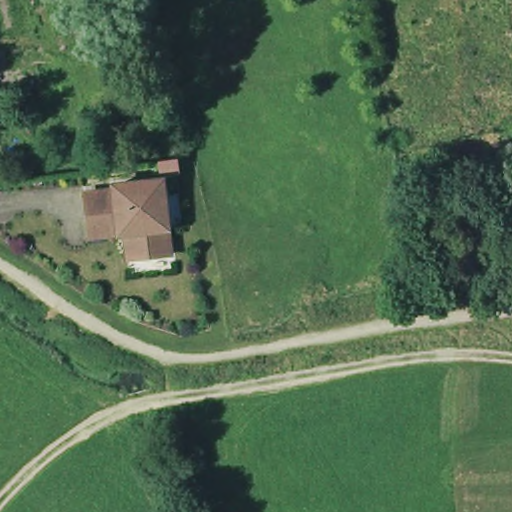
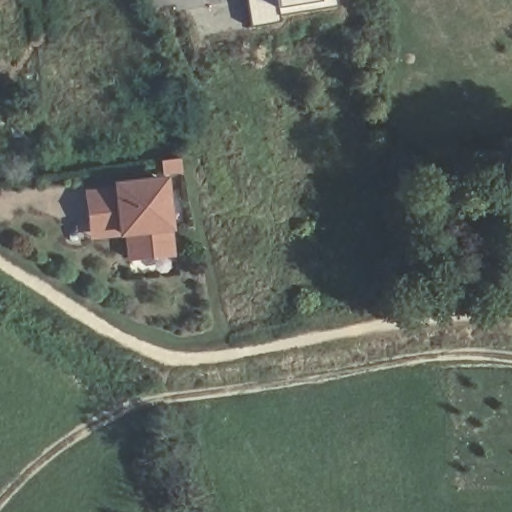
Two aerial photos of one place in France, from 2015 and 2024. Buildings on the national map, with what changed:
new [(278,21),(249,26),(245,0),(274,0),(276,10),(278,21)]
new [(276,10),(274,0),(319,0),(319,3),(276,10)]
unchanged [(98,224),(98,225),(94,191),(124,188),(124,184),(172,178),(181,252),(138,256),(136,231),(99,235),(98,224)]

